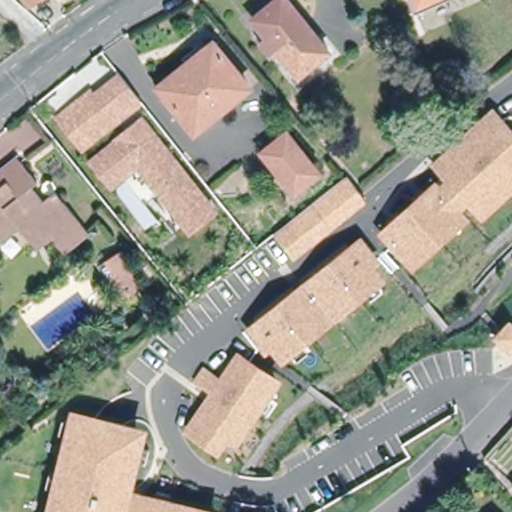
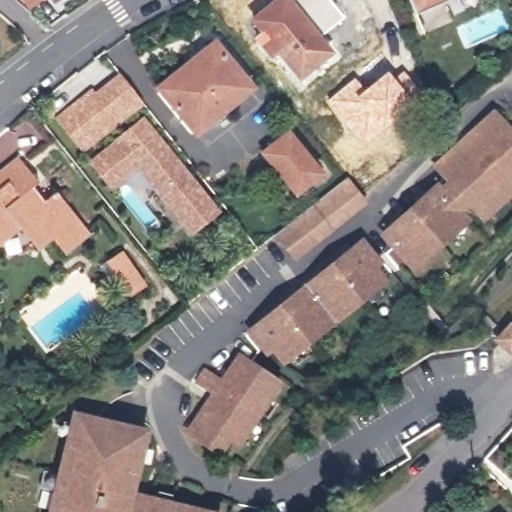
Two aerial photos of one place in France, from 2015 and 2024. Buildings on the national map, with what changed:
unchanged [(35,0),(29,3),(27,0),(35,0)]
unchanged [(298,67),(251,12),(265,0),(292,0),(328,41),(298,67)]
unchanged [(412,0),(449,0),(418,13),(412,0)]
unchanged [(194,129),(159,84),(214,39),(253,83),(194,129)]
new [(355,77),(364,89),(387,70),(394,78),(404,70),(422,95),(395,122),(361,147),(326,100),(355,77)]
unchanged [(144,105),(84,153),(53,116),(92,85),(96,90),(119,73),(144,105)]
unchanged [(437,181),(440,186),(446,180),(432,165),(496,109),(512,128),(512,197),(485,223),(470,208),(465,212),(473,220),(414,273),(380,234),(437,181)]
unchanged [(218,212),(192,234),(139,169),(112,191),(88,161),(143,114),(218,212)]
unchanged [(297,191),(264,153),(289,132),(321,170),(297,191)]
unchanged [(9,178),(5,173),(23,160),(40,181),(34,185),(45,198),(57,190),(87,226),(61,246),(52,234),(37,245),(24,231),(22,229),(1,247),(0,246),(0,186),(9,178)]
unchanged [(349,177),(366,200),(295,258),(277,233),(349,177)]
unchanged [(273,350),(267,355),(247,329),(361,238),(383,263),(377,267),(388,282),(285,365),(273,350)]
unchanged [(142,286),(123,299),(100,263),(121,251),(142,286)]
unchanged [(210,395),(197,385),(208,370),(221,378),(238,354),(283,384),(241,450),(231,442),(221,456),(185,432),(210,395)]
unchanged [(150,429),(135,491),(222,512),(46,512),(51,490),(46,488),(50,473),(55,475),(65,435),(61,434),(65,418),(69,419),(72,411),(150,429)]

